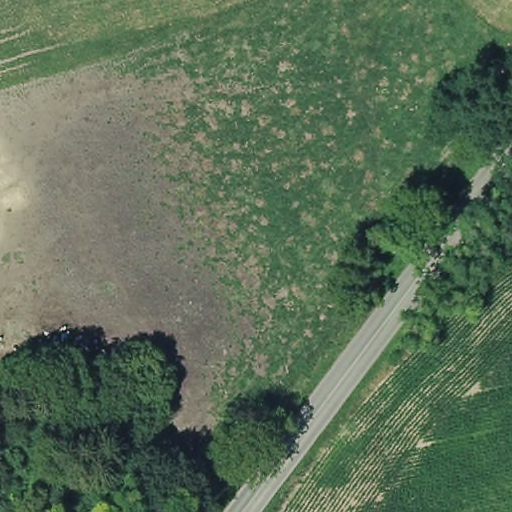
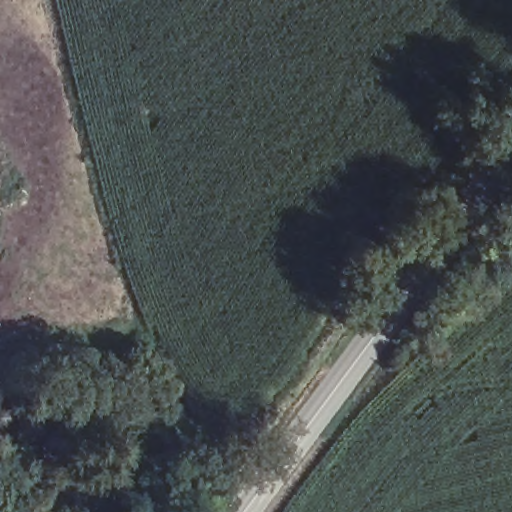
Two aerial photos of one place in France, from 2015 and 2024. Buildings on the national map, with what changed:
unchanged [(91,417),(60,424),(57,410),(87,401),(91,417)]

